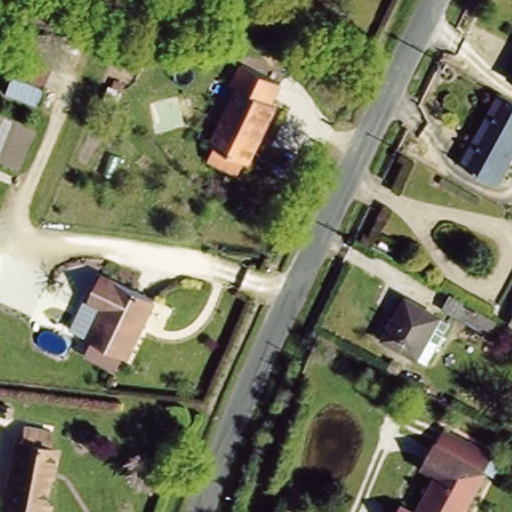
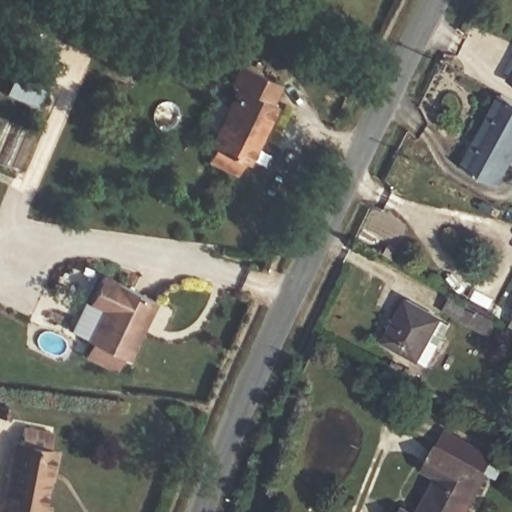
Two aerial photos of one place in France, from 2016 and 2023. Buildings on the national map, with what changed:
unchanged [(14,69),(44,81),(30,113),(1,100),(14,69)]
unchanged [(507,81),(512,72),(512,84),(507,81)]
unchanged [(266,114),(271,116),(242,175),(237,172),(231,185),(205,172),(211,159),(204,155),(232,97),(227,94),(236,74),(276,95),(266,114)]
unchanged [(512,95),(512,160),(502,178),(467,159),(505,91),(512,95)]
unchanged [(87,353),(98,331),(94,328),(102,313),(90,305),(106,276),(157,304),(132,350),(122,344),(107,369),(87,353)]
unchanged [(429,352),(377,321),(399,285),(436,306),(451,315),(429,352)]
unchanged [(496,312),(482,333),(451,315),(436,306),(448,285),(496,312)]
unchanged [(502,315),(512,298),(512,321),(502,315)]
unchanged [(63,422),(57,453),(65,455),(55,508),(66,510),(66,512),(21,512),(24,498),(10,495),(26,412),(63,422)]
unchanged [(489,476),(466,512),(401,512),(408,503),(422,511),(441,481),(430,475),(446,449),(489,476)]

